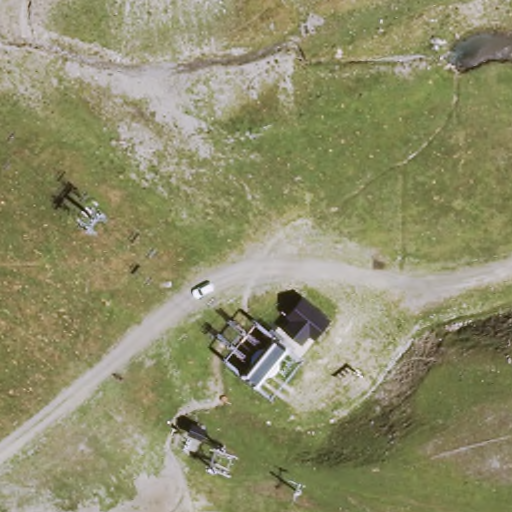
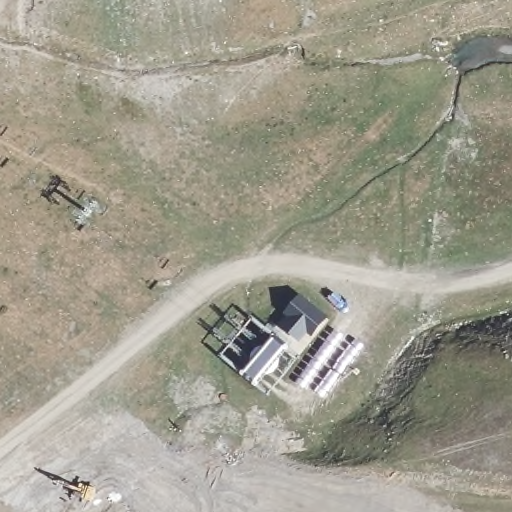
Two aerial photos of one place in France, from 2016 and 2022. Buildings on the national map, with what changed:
unchanged [(281,331),(287,323),(282,319),(299,296),(327,320),(312,338),(306,334),(299,344),(281,331)]

